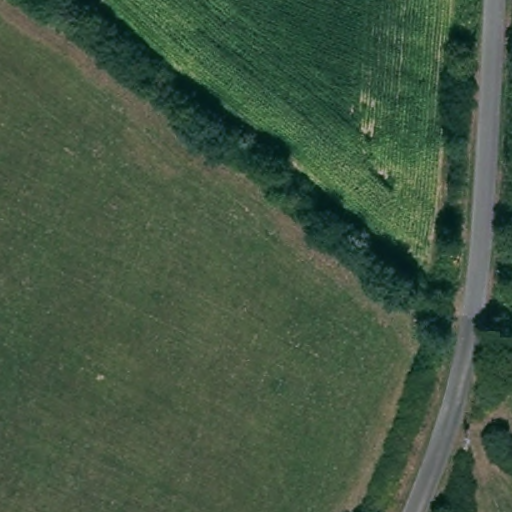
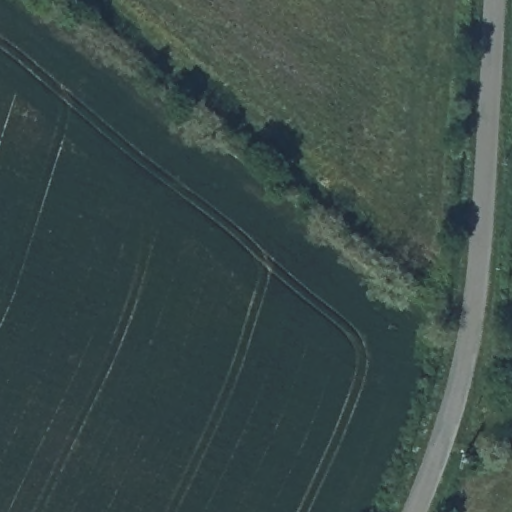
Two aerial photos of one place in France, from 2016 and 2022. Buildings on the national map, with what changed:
[]

